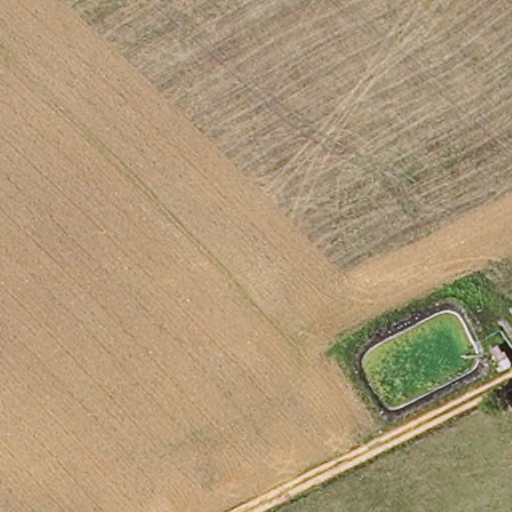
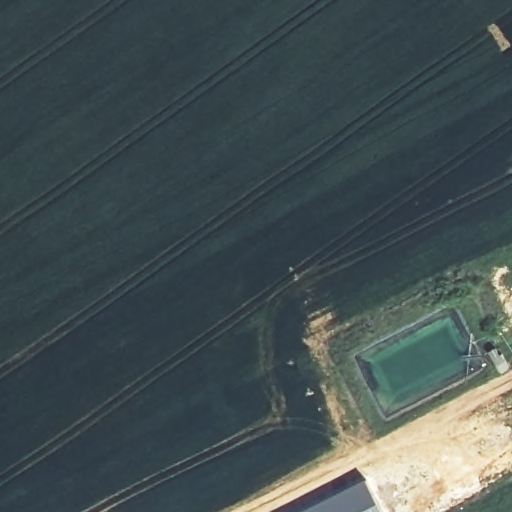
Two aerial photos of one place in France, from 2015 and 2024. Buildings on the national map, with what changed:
unchanged [(508,379),(500,362),(512,357),(512,377),(508,379)]
new [(303,505),(363,477),(383,512),(291,512),(303,505)]

